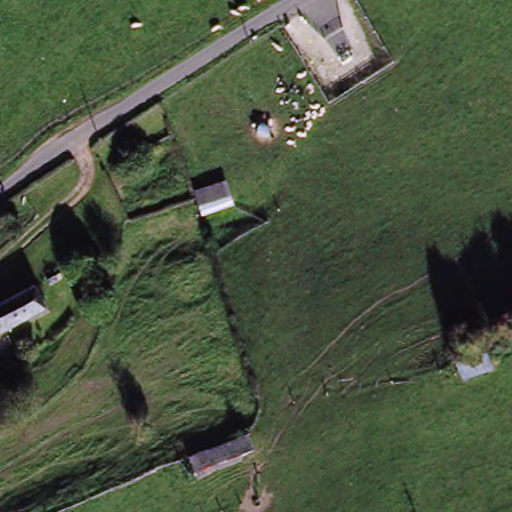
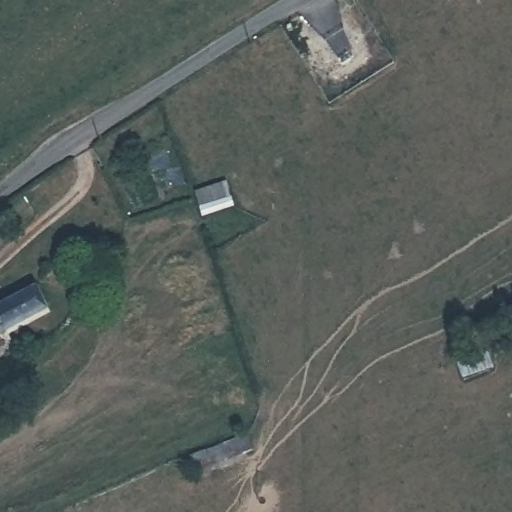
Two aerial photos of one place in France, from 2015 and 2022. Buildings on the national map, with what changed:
unchanged [(197,213),(192,188),(229,177),(236,202),(197,213)]
unchanged [(45,310),(0,335),(0,306),(33,288),(45,310)]
unchanged [(457,385),(451,362),(491,350),(496,373),(457,385)]
unchanged [(194,480),(187,455),(251,433),(257,460),(194,480)]

